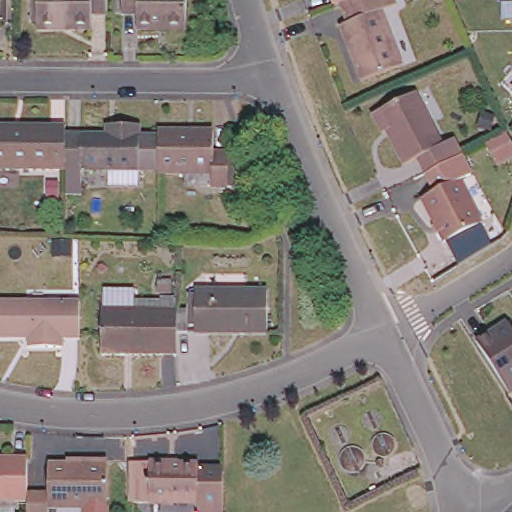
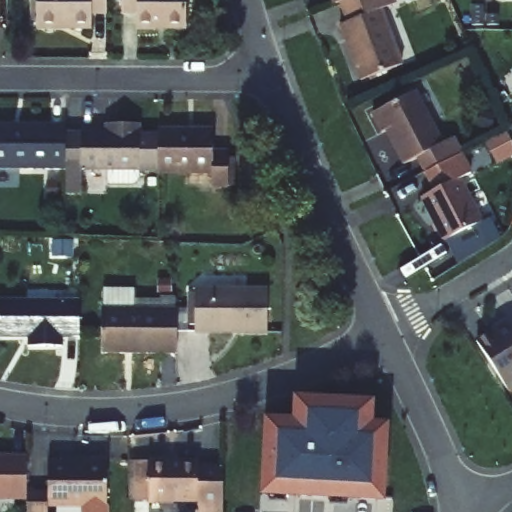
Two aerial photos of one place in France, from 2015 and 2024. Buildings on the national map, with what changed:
unchanged [(7,22),(0,22),(0,0),(7,0),(7,22)]
unchanged [(40,25),(40,0),(111,0),(111,16),(96,15),(95,31),(75,31),(40,31),(40,25)]
unchanged [(160,32),(143,31),(143,16),(127,16),(127,0),(191,0),(190,27),(190,32),(160,32)]
unchanged [(332,0),(345,0),(333,5),(332,0)]
unchanged [(365,85),(345,30),(385,15),(405,69),(365,85)]
unchanged [(391,128),(386,130),(376,110),(419,89),(435,122),(397,139),(391,128)]
unchanged [(511,90),(512,89),(512,91),(511,90)]
unchanged [(435,122),(445,142),(457,136),(464,151),(430,169),(423,154),(407,161),(397,139),(435,122)]
unchanged [(70,171),(0,170),(0,124),(70,125),(70,135),(70,171)]
unchanged [(110,125),(120,125),(144,125),(143,136),(162,136),(162,156),(162,172),(143,171),(143,181),(137,187),(112,187),(111,172),(87,172),(87,197),(70,197),(70,171),(70,135),(110,135),(110,125)]
unchanged [(512,142),(512,150),(497,157),(488,140),(507,130),(512,142)]
unchanged [(188,176),(188,175),(162,174),(162,172),(162,156),(162,136),(162,132),(217,133),(217,154),(232,155),(232,160),(240,161),(239,187),(232,187),(217,187),(189,187),(188,176)]
unchanged [(448,240),(426,196),(439,189),(430,171),(465,152),(475,171),(462,178),(485,221),(448,240)]
unchanged [(267,334),(194,333),(195,290),(267,291),(267,334)]
unchanged [(105,310),(107,310),(107,294),(138,294),(138,301),(163,301),(164,291),(181,291),(180,309),(180,356),(105,355),(105,310)]
unchanged [(0,336),(0,300),(78,302),(78,338),(63,337),(62,346),(40,346),(27,346),(27,336),(0,336)]
unchanged [(512,330),(512,393),(510,394),(473,339),(505,320),(512,330)]
new [(267,417),(295,419),(297,396),(368,401),(370,425),(387,426),(383,500),(263,497),(267,417)]
demolished [(383,457),(377,455),(372,449),(372,440),(375,436),(380,433),(385,432),(391,434),(395,440),(396,446),(395,451),(390,455),(383,457)]
demolished [(364,464),(360,469),(355,472),(350,472),(343,469),(340,464),(340,455),(343,451),(348,447),(354,447),(360,449),(364,455),(365,460),(364,464)]
unchanged [(30,496),(0,495),(0,451),(31,452),(30,488),(30,496)]
unchanged [(30,488),(50,488),(50,459),(90,460),(90,455),(108,455),(108,504),(50,503),(50,512),(30,512),(30,496),(30,488)]
unchanged [(201,512),(200,502),(176,503),(175,505),(152,505),(152,460),(172,460),(172,463),(200,463),(200,468),(227,468),(227,512),(201,512)]

